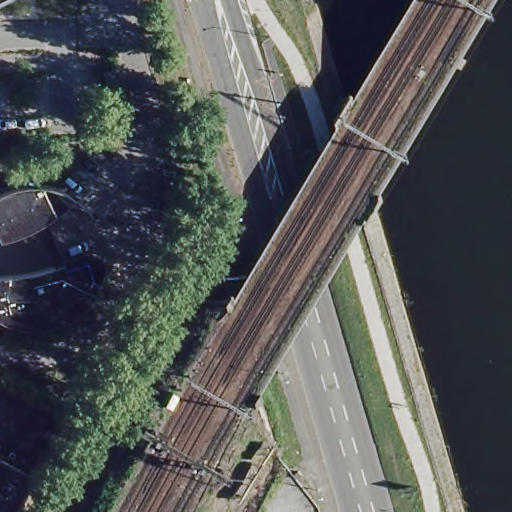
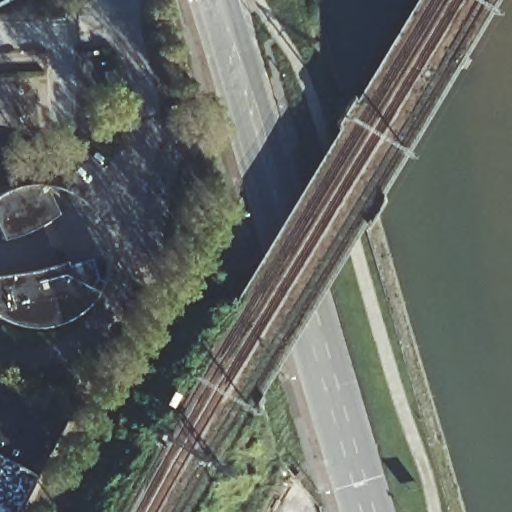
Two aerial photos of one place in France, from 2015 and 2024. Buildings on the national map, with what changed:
unchanged [(4,0),(0,2),(0,0),(4,0)]
unchanged [(12,83),(16,95),(4,99),(0,86),(12,83)]
unchanged [(43,179),(59,213),(2,236),(0,233),(0,195),(43,179)]
unchanged [(87,256),(101,283),(94,295),(85,304),(67,315),(52,321),(31,324),(12,319),(0,312),(0,275),(87,256)]
unchanged [(11,512),(0,512),(0,376),(63,409),(11,512)]

